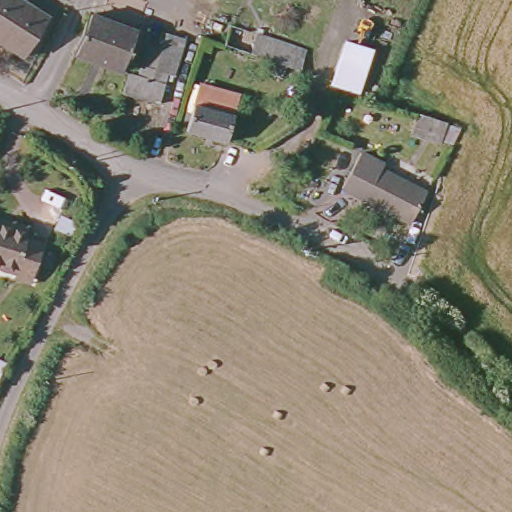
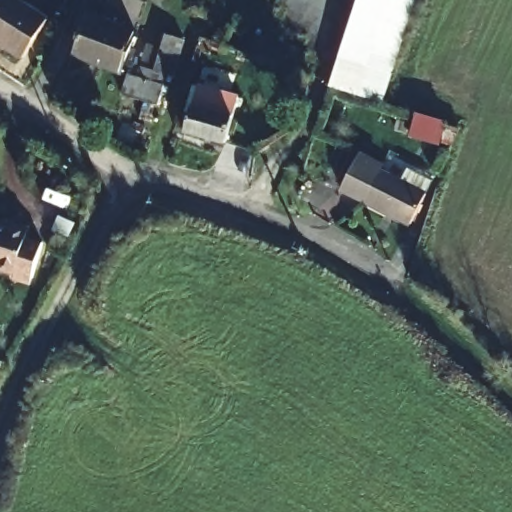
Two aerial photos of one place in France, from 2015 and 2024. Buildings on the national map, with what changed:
unchanged [(0,39),(0,0),(16,0),(49,20),(29,56),(0,39)]
new [(347,38),(358,0),(413,0),(414,1),(382,98),(362,91),(377,48),(347,38)]
unchanged [(81,47),(100,16),(117,27),(139,42),(120,72),(109,65),(81,47)]
unchanged [(257,65),(261,54),(228,41),(223,39),(231,18),(302,44),(294,67),(284,63),(280,74),(257,65)]
unchanged [(171,81),(169,105),(130,101),(133,76),(150,77),(152,48),(186,53),(180,82),(171,81)]
unchanged [(235,92),(225,137),(187,128),(198,84),(235,92)]
unchanged [(441,121),(431,144),(403,132),(412,110),(441,121)]
unchanged [(347,185),(365,150),(387,161),(382,171),(396,179),(402,167),(427,181),(421,192),(409,216),(347,185)]
unchanged [(2,228),(27,236),(25,242),(44,247),(35,273),(0,263),(0,221),(3,222),(2,228)]

